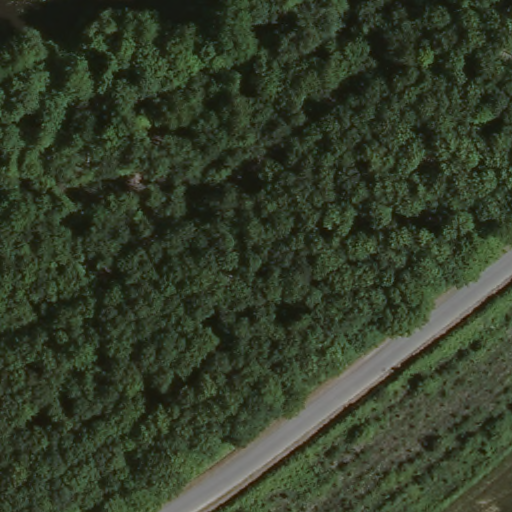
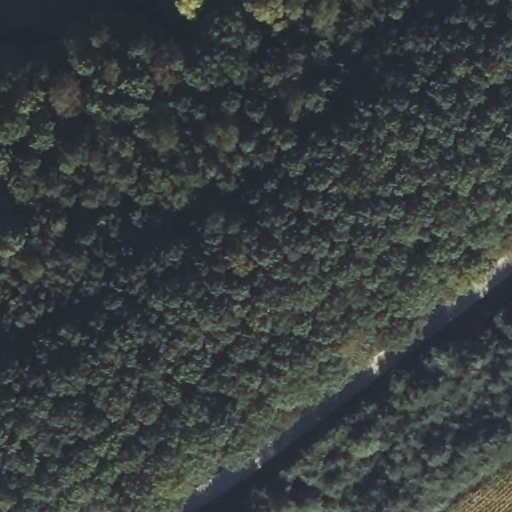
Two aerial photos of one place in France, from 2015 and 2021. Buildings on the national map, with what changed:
[]

